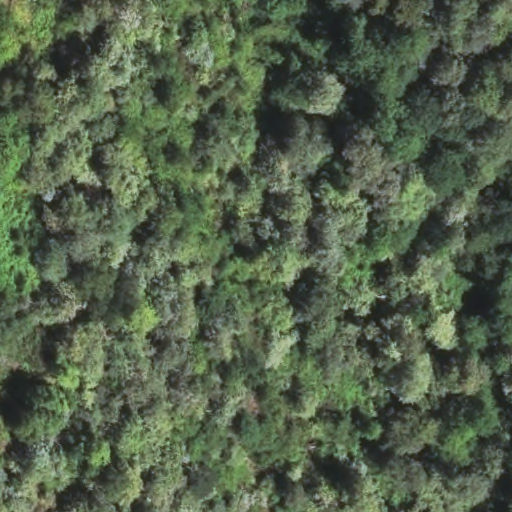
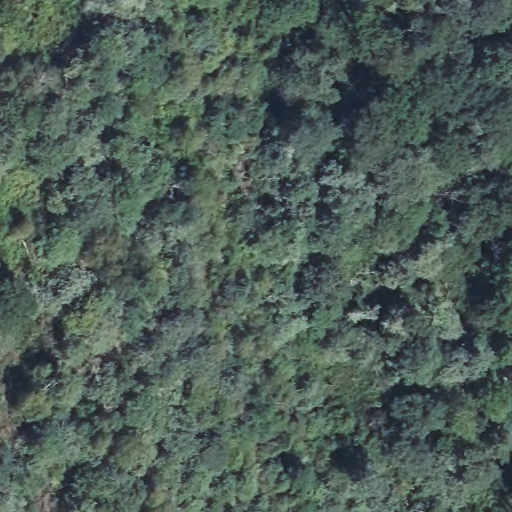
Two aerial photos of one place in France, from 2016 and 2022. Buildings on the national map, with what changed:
[]

